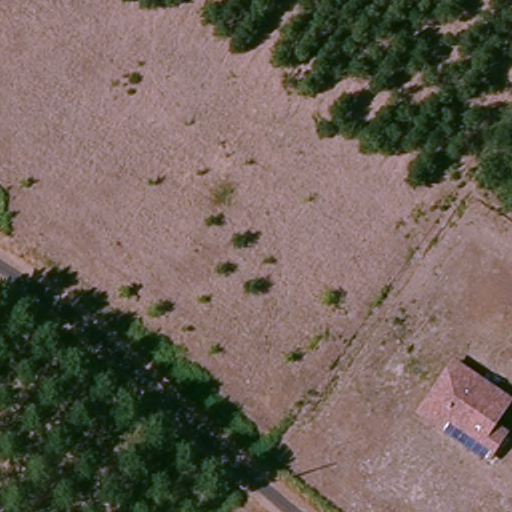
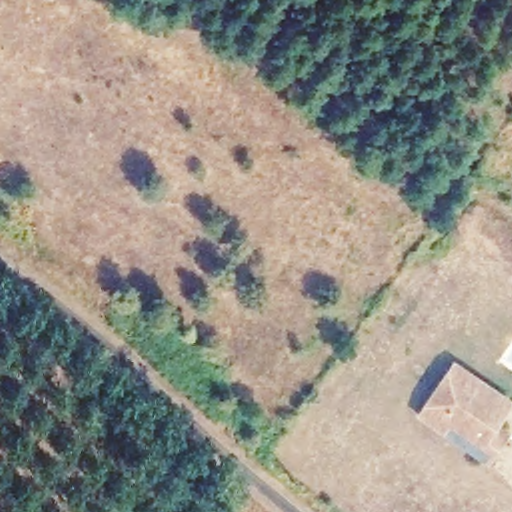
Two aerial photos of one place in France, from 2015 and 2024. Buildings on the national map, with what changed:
unchanged [(483,459),(470,450),(417,413),(452,363),(505,400),(488,424),(501,433),(483,459)]

